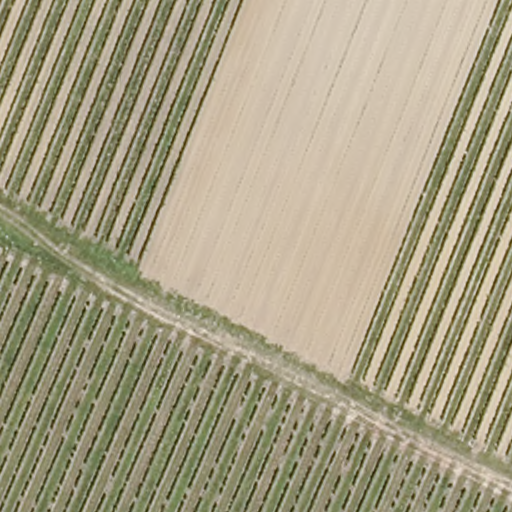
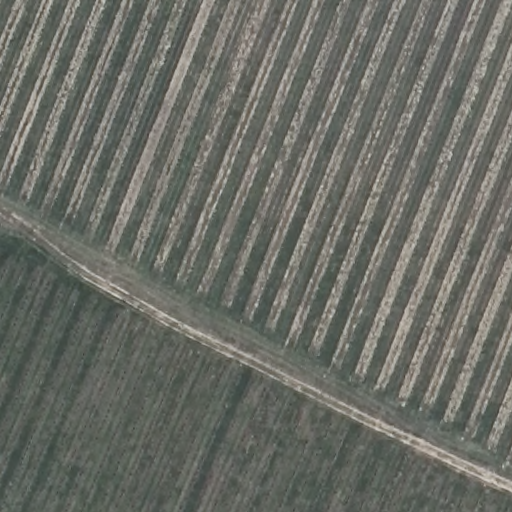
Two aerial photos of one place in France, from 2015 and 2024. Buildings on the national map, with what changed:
[]

